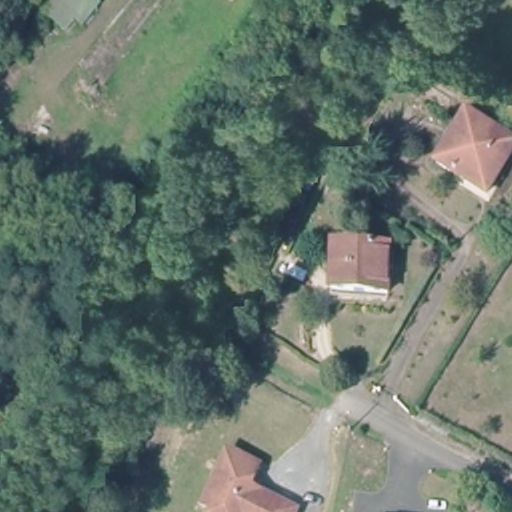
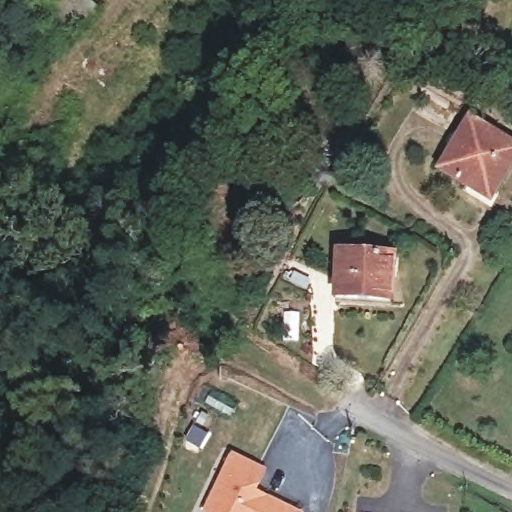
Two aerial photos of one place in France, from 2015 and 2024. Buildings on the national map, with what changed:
unchanged [(440,162),(469,115),(512,139),(512,155),(488,192),(440,162)]
unchanged [(394,293),(337,292),(337,248),(394,247),(394,293)]
unchanged [(234,450),(266,465),(255,490),(271,497),(273,491),(304,506),(302,512),(222,512),(223,510),(211,502),(217,488),(234,450)]

